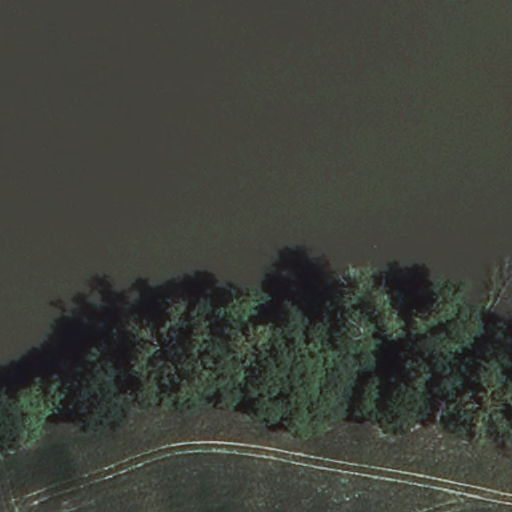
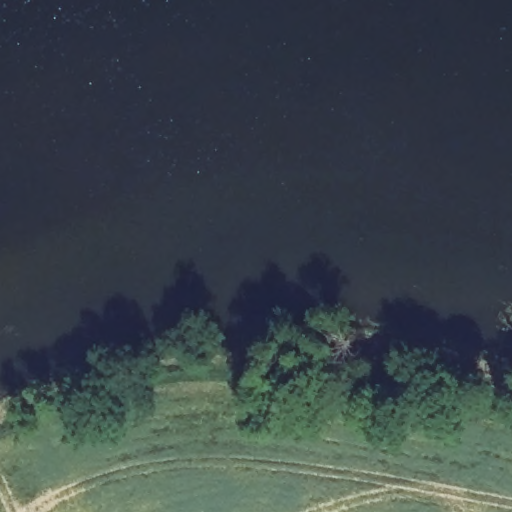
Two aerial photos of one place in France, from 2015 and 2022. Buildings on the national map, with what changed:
[]

